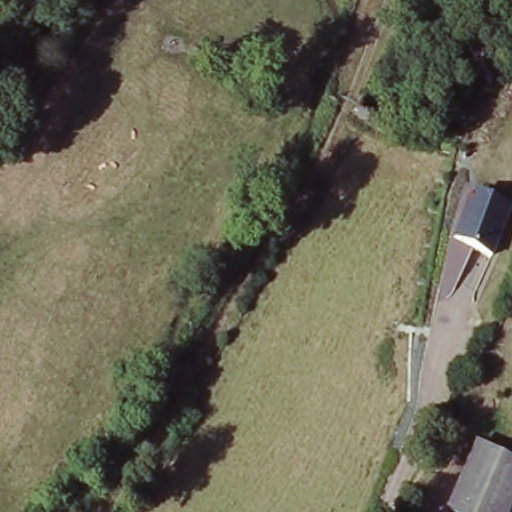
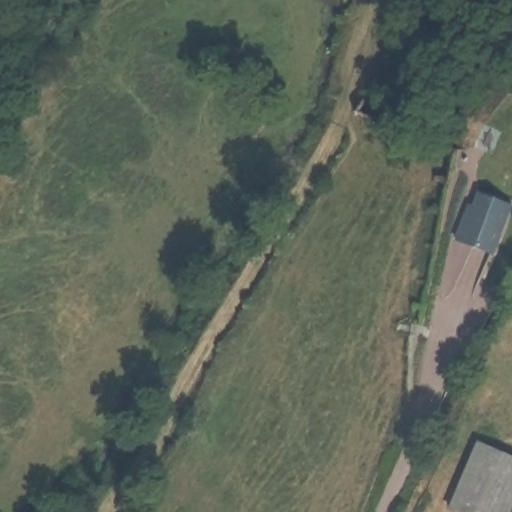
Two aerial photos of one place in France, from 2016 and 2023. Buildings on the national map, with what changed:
unchanged [(452,240),(465,204),(470,206),(475,191),(510,204),(490,256),(452,240)]
unchanged [(512,504),(508,512),(458,512),(452,509),(486,442),(512,455),(512,504)]

